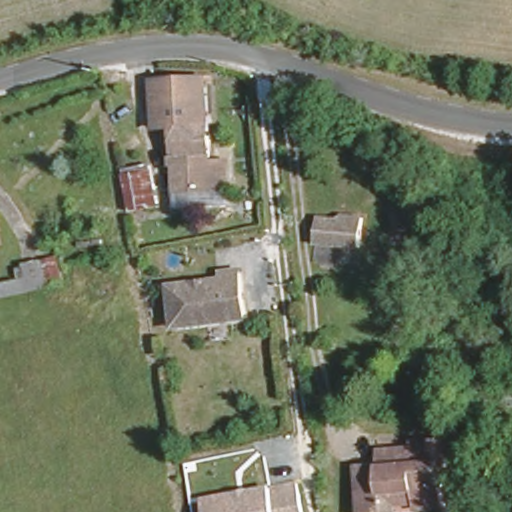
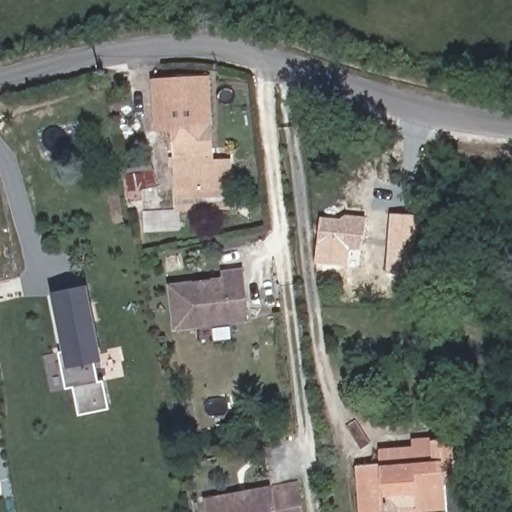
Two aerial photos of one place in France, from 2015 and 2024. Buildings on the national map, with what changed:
unchanged [(205,79),(214,164),(231,162),(232,171),(234,189),(182,194),(180,176),(175,130),(158,132),(152,85),(205,79)]
unchanged [(133,181),(131,170),(163,165),(165,179),(171,215),(139,218),(133,181)]
unchanged [(353,221),(354,215),(375,216),(375,263),(351,262),(352,240),(325,238),(326,220),(353,221)]
demolished [(380,290),(386,222),(416,225),(409,294),(380,290)]
unchanged [(210,270),(237,267),(241,321),(176,326),(172,283),(212,280),(210,270)]
new [(80,415),(75,387),(68,388),(64,365),(50,293),(88,285),(103,361),(95,362),(98,380),(105,380),(111,409),(80,415)]
unchanged [(384,457),(383,448),(413,445),(412,436),(464,432),(470,512),(442,512),(442,500),(417,501),(417,512),(361,512),(357,460),(384,457)]
unchanged [(271,485),(277,512),(211,512),(208,495),(271,485)]

